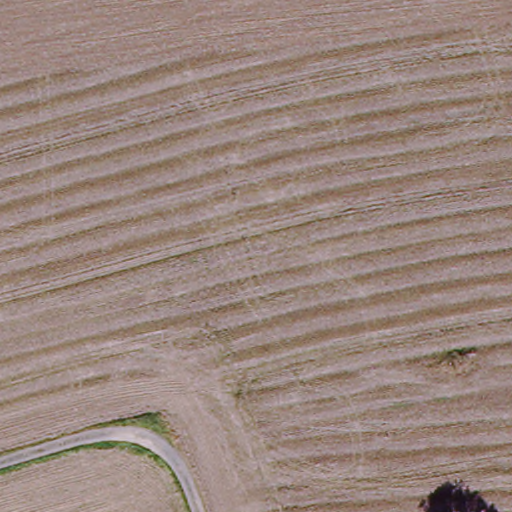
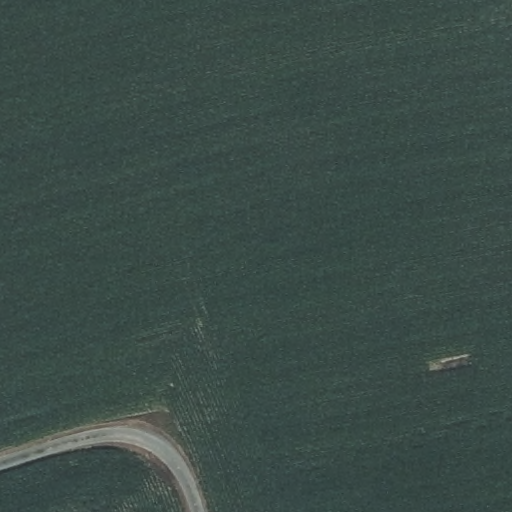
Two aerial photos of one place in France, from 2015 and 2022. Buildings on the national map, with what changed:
[]

